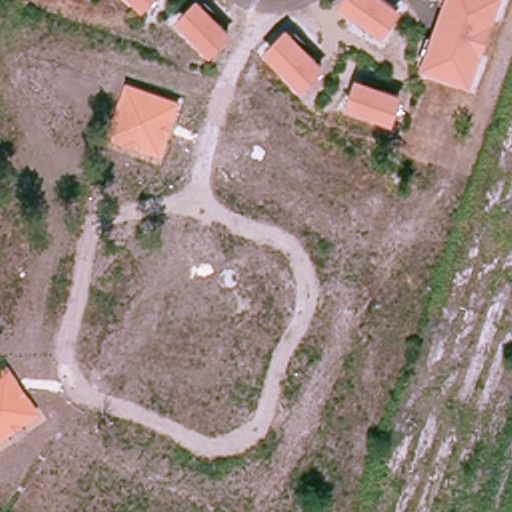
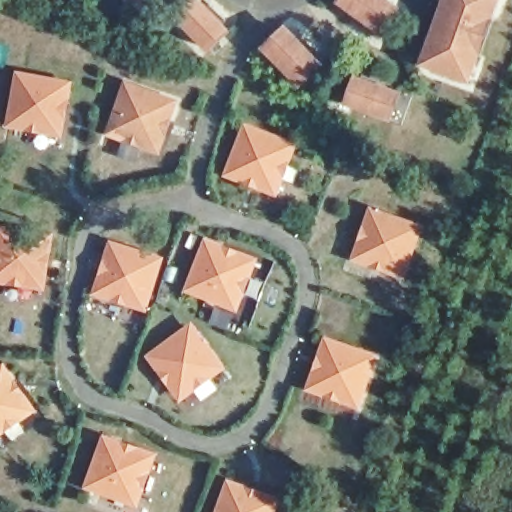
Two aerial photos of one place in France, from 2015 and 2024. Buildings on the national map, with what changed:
unchanged [(133,0),(145,0),(139,6),(133,0)]
unchanged [(347,0),(376,0),(393,12),(376,35),(340,9),(347,0)]
unchanged [(425,65),(434,38),(446,5),(447,0),(495,0),(488,20),(477,54),(467,80),(425,65)]
unchanged [(204,4),(232,32),(211,52),(184,24),(204,4)]
unchanged [(319,66),(299,85),(268,54),(289,34),(319,66)]
new [(7,128),(17,72),(71,81),(60,137),(7,128)]
unchanged [(402,90),(389,127),(351,114),(365,76),(402,90)]
unchanged [(163,156),(108,140),(124,83),(179,102),(163,156)]
new [(226,176),(245,122),(298,142),(278,197),(226,176)]
new [(367,245),(374,227),(377,228),(381,214),(428,230),(412,277),(365,261),(370,247),(367,245)]
new [(0,283),(0,226),(54,235),(46,290),(0,283)]
new [(186,291),(207,239),(258,258),(238,312),(186,291)]
new [(94,295),(110,242),(165,257),(148,312),(94,295)]
new [(148,357),(192,323),(227,369),(182,402),(148,357)]
new [(326,337),(379,355),(358,408),(307,390),(326,337)]
unchanged [(36,413),(0,439),(0,368),(6,363),(36,413)]
new [(85,487),(104,435),(156,454),(139,507),(85,487)]
new [(283,498),(278,512),(215,512),(228,478),(283,498)]

